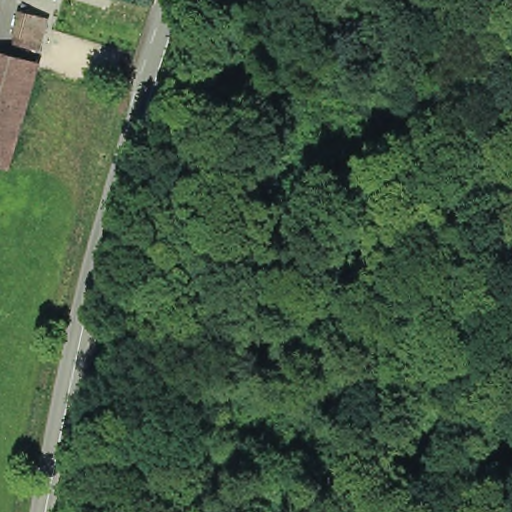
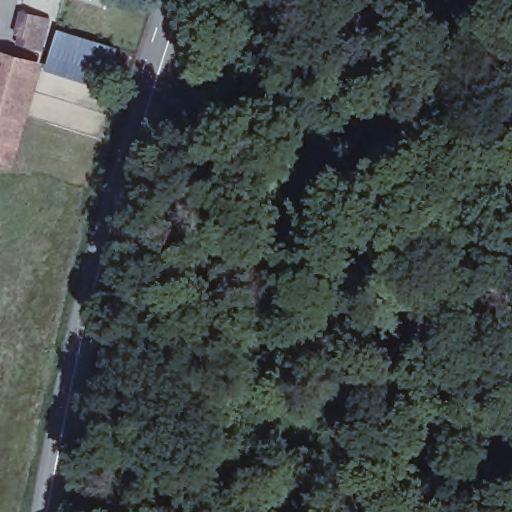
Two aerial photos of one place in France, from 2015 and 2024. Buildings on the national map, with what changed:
unchanged [(54,14),(43,46),(4,33),(19,4),(54,14)]
new [(55,27),(124,50),(111,87),(41,67),(55,27)]
unchanged [(10,173),(0,170),(0,43),(41,55),(10,173)]

